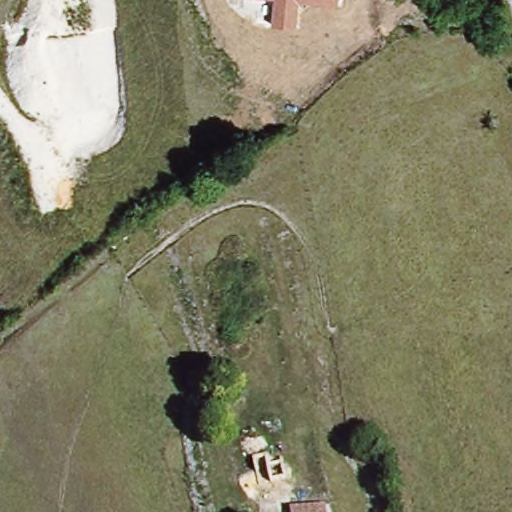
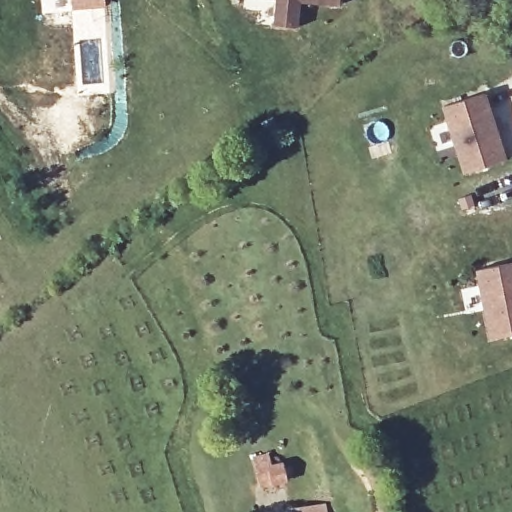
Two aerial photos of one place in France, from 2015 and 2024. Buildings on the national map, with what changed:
new [(42,9),(41,0),(103,0),(109,89),(77,91),(76,76),(75,61),(72,7),(42,9)]
unchanged [(303,1),(300,28),(274,25),(276,0),(342,0),(341,6),(303,1)]
new [(507,159),(463,174),(442,106),(486,91),(507,159)]
new [(477,271),(512,264),(512,335),(490,340),(477,271)]
unchanged [(292,505),(326,500),(329,512),(294,512),(292,505)]

